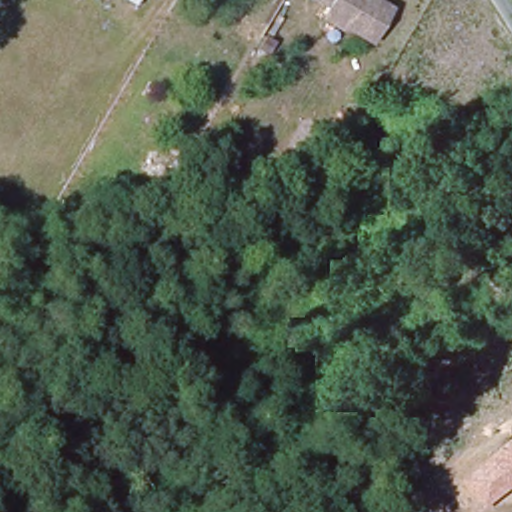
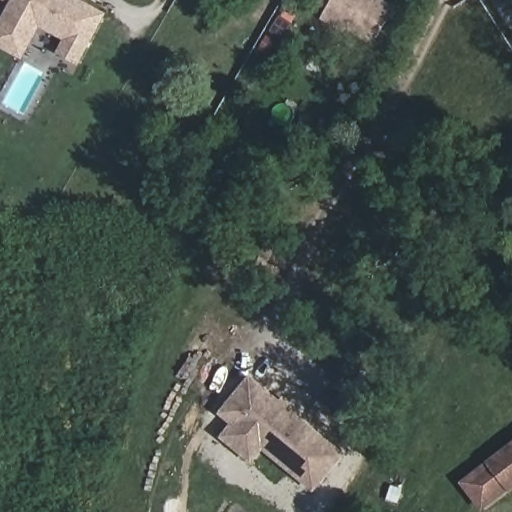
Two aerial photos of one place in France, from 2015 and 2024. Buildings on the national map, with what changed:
new [(56,54),(65,38),(40,26),(21,59),(0,48),(0,21),(11,0),(82,0),(106,12),(78,66),(56,54)]
unchanged [(395,7),(372,45),(324,17),(328,6),(318,0),(381,0),(395,7)]
new [(282,396),(296,408),(294,411),(345,453),(314,492),(262,449),(251,464),(220,437),(231,424),(219,412),(250,374),(280,399),(282,396)]
unchanged [(476,512),(455,482),(512,439),(512,488),(476,512)]

